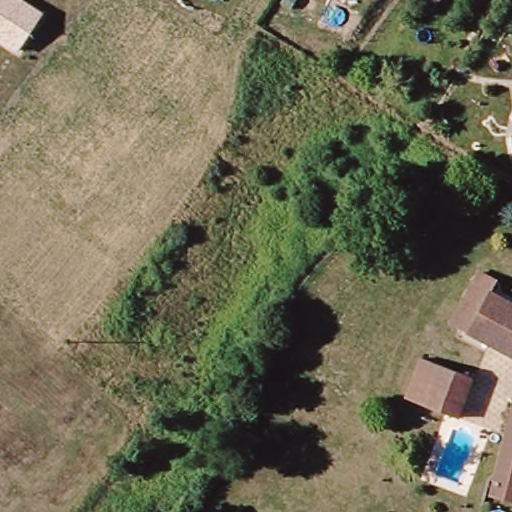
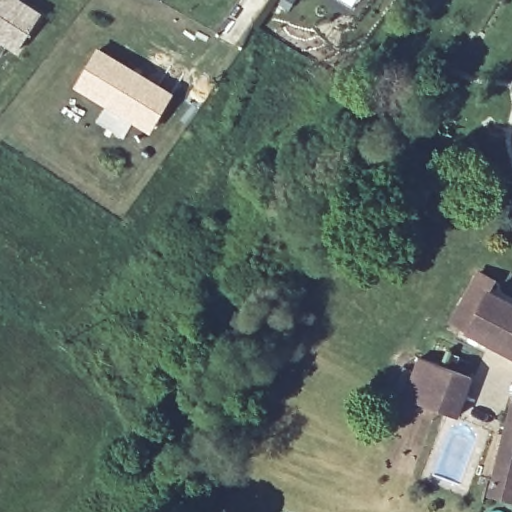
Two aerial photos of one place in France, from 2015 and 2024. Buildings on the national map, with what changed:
unchanged [(0,41),(0,0),(25,0),(45,13),(18,52),(0,41)]
new [(97,46),(174,93),(150,134),(132,124),(122,139),(95,120),(104,107),(71,86),(97,46)]
unchanged [(483,271),(501,281),(497,289),(495,295),(512,305),(512,357),(453,325),(483,271)]
unchanged [(474,381),(457,418),(410,396),(428,359),(442,366),(474,381)]
unchanged [(510,406),(512,406),(512,483),(499,481),(510,406)]

